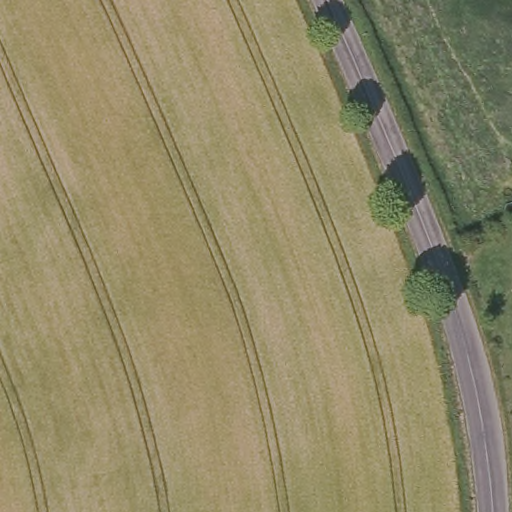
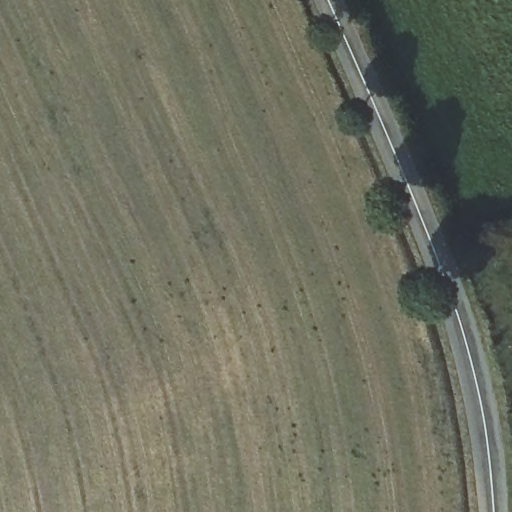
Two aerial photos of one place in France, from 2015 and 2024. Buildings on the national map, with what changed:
[]

